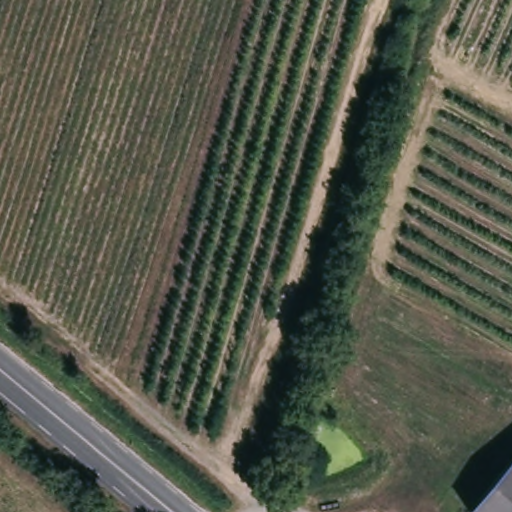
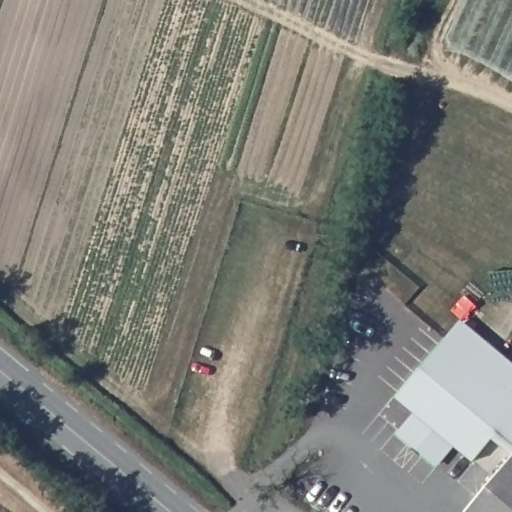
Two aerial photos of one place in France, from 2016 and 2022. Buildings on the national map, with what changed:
new [(474,463),(455,447),(436,468),(396,435),(414,413),(395,397),(463,319),(512,360),(512,453),(493,438),(474,463)]
unchanged [(512,464),(512,512),(473,512),(510,466),(512,464)]

